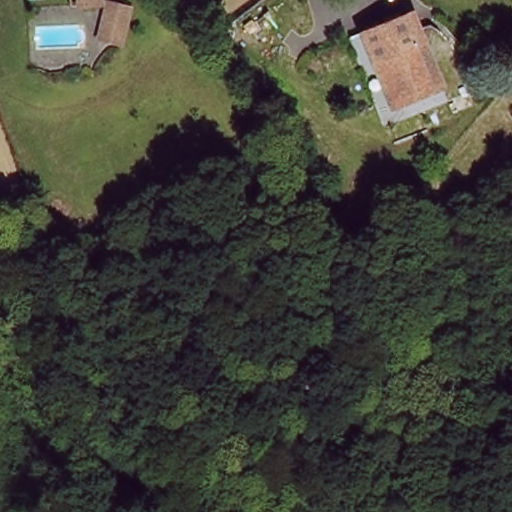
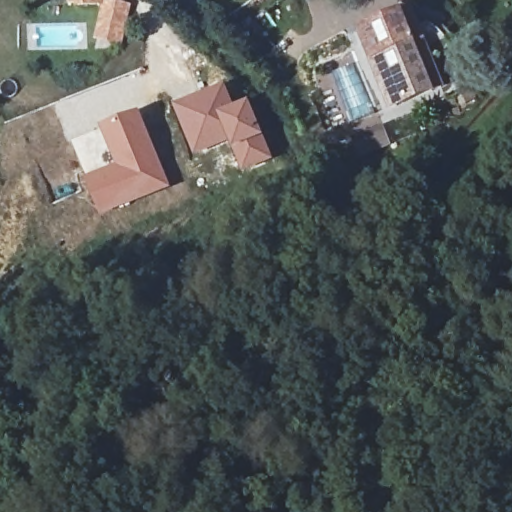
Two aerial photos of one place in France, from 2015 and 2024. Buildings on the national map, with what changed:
unchanged [(80,0),(102,0),(102,5),(80,6),(80,0)]
unchanged [(122,44),(101,39),(103,30),(109,3),(130,7),(127,22),(122,44)]
unchanged [(435,92),(388,112),(357,37),(411,12),(426,48),(444,89),(435,92)]
new [(226,86),(236,108),(249,102),(273,160),(241,174),(227,144),(193,157),(173,109),(226,86)]
new [(85,173),(73,142),(100,131),(140,113),(171,188),(99,218),(82,182),(113,167),(111,162),(85,173)]
new [(378,114),(391,144),(355,159),(341,132),(378,114)]

